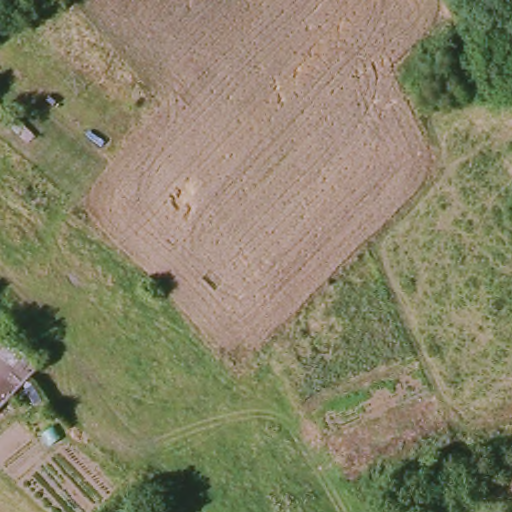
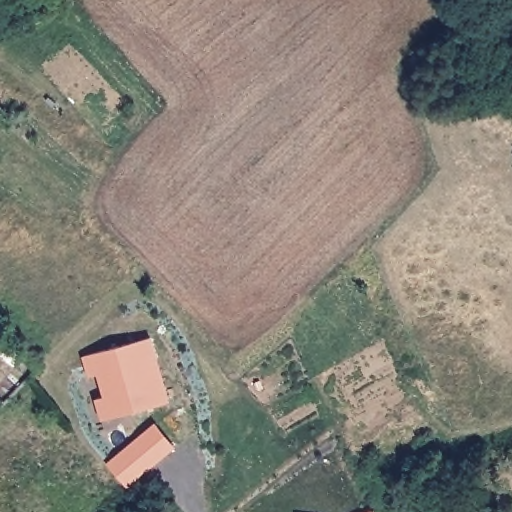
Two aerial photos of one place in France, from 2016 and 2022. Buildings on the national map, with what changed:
new [(169,402),(100,422),(95,400),(102,397),(97,376),(87,378),(82,357),(151,337),(169,402)]
new [(175,446),(127,487),(107,464),(154,423),(175,446)]
new [(372,512),(368,512),(372,511),(372,512)]

